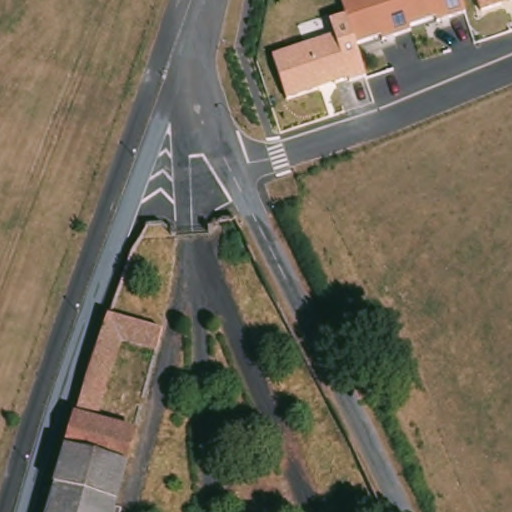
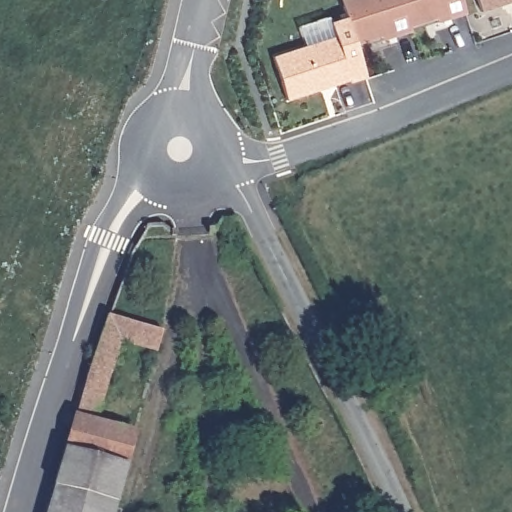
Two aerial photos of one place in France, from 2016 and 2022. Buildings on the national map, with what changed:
unchanged [(354,46),(364,78),(285,103),(272,56),(334,38),(329,22),(347,18),(342,0),(461,0),(464,9),(354,46)]
unchanged [(476,0),(512,0),(512,1),(479,12),(476,0)]
unchanged [(39,497),(56,441),(60,428),(79,359),(99,307),(154,322),(148,342),(109,332),(87,412),(128,422),(103,512),(35,512),(39,497)]

